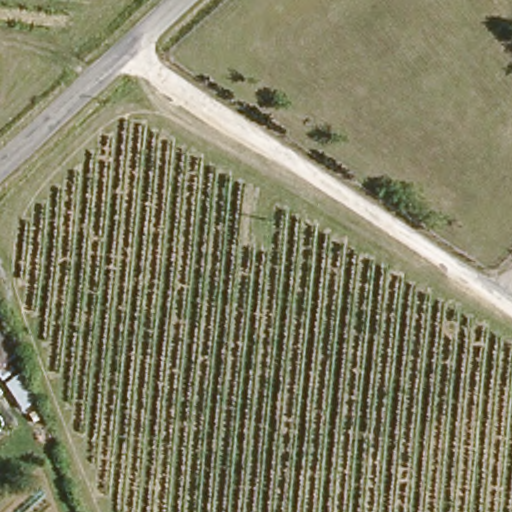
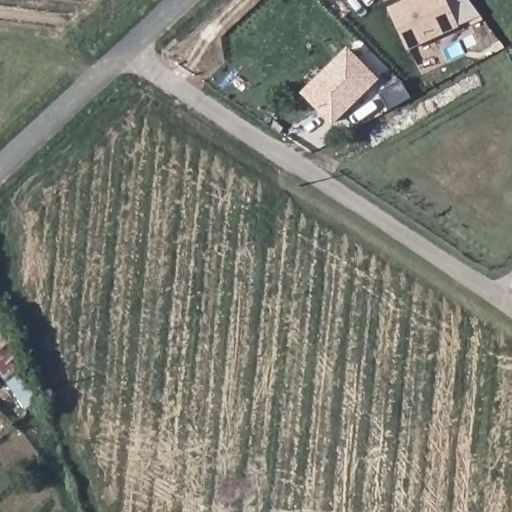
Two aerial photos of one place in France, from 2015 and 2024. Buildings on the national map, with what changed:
new [(459,27),(407,50),(388,7),(405,0),(469,0),(481,16),(459,27)]
new [(378,80),(333,126),(301,93),(347,47),(378,80)]

